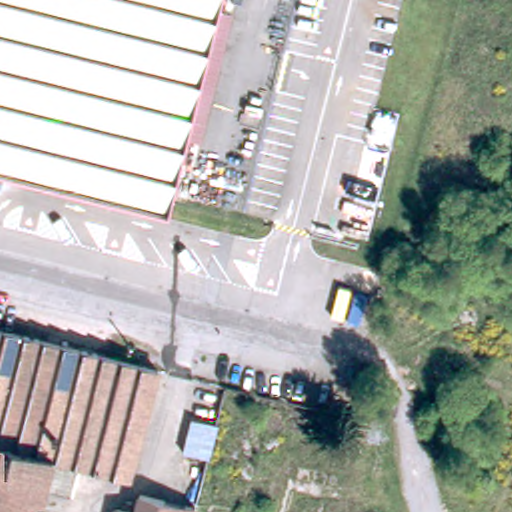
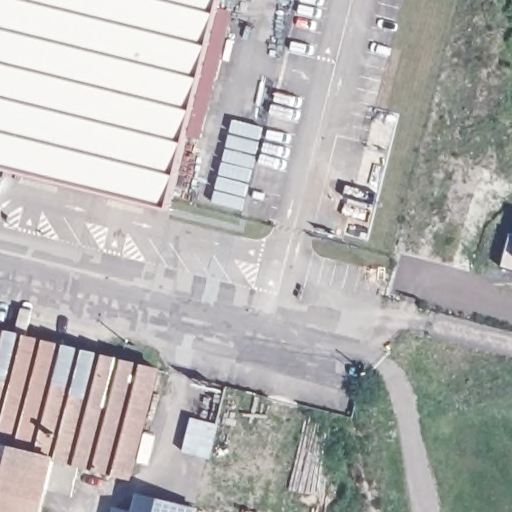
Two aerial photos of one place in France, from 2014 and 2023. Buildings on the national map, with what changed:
unchanged [(200,82),(167,208),(0,166),(0,0),(221,0),(200,82)]
new [(512,269),(500,265),(508,233),(512,234),(512,269)]
unchanged [(157,367),(130,472),(79,460),(72,486),(47,479),(39,512),(0,512),(0,328),(157,367)]
unchanged [(134,511),(139,491),(195,505),(193,512),(114,512),(115,507),(134,511)]

